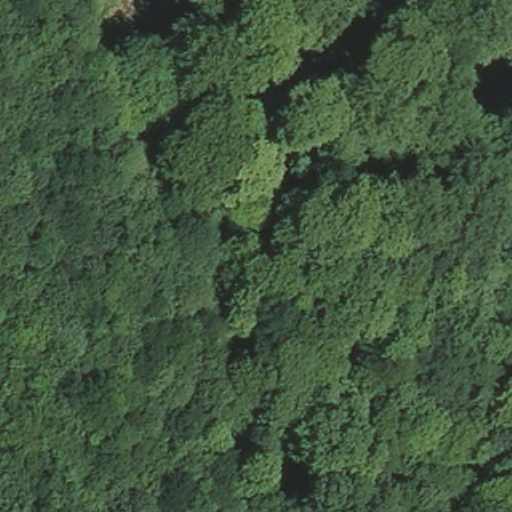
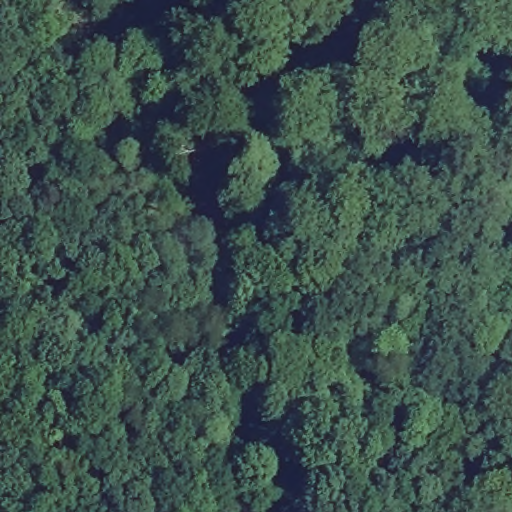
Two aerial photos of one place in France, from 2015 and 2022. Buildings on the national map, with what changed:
[]

